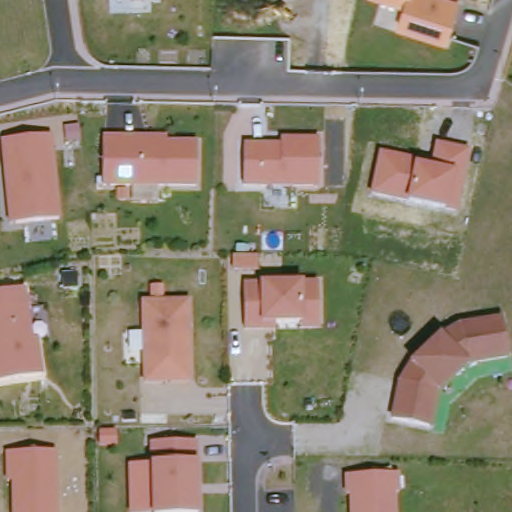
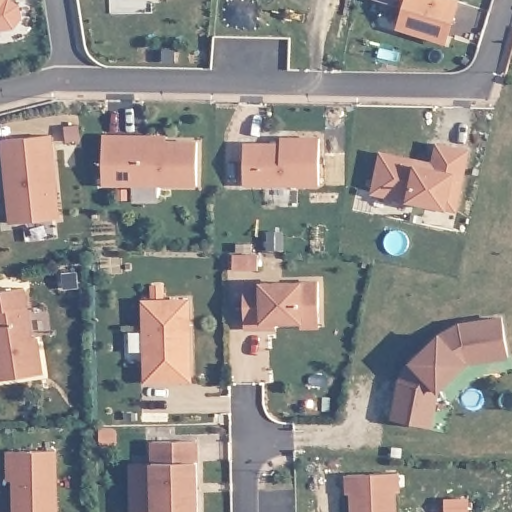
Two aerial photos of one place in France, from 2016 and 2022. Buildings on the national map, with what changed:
new [(13,5),(16,5),(25,11),(27,23),(21,32),(0,36),(0,0),(12,0),(13,5)]
unchanged [(445,42),(393,26),(400,5),(382,0),(459,0),(445,42)]
unchanged [(15,192),(11,144),(59,139),(67,222),(24,226),(19,226),(15,192)]
unchanged [(149,140),(175,140),(175,145),(206,146),(205,190),(111,189),(112,140),(149,140)]
unchanged [(455,209),(445,207),(404,199),(370,192),(378,150),(430,159),(434,140),(468,147),(455,209)]
unchanged [(297,149),(297,143),(327,143),(327,190),(252,189),(252,149),(297,149)]
unchanged [(266,259),(266,275),(240,275),(241,259),(266,259)]
unchanged [(302,322),(302,315),(263,316),(263,322),(247,322),(245,278),(319,274),(320,300),(320,320),(302,322)]
unchanged [(85,276),(86,290),(72,291),(72,277),(85,276)]
unchanged [(160,280),(160,290),(150,290),(150,280),(160,280)]
unchanged [(0,295),(25,291),(32,342),(38,342),(42,378),(0,384),(0,295)]
unchanged [(167,380),(145,380),(142,300),(188,298),(189,360),(190,378),(167,380)]
unchanged [(508,351),(470,358),(440,389),(433,422),(395,415),(402,377),(413,359),(442,331),(460,320),(503,313),(508,351)]
unchanged [(202,512),(158,512),(156,440),(200,438),(202,512)]
unchanged [(13,512),(12,480),(7,480),(7,470),(6,450),(55,449),(57,512),(13,512)]
unchanged [(392,495),(393,512),(351,512),(350,496),(346,496),(345,477),(397,475),(397,495),(392,495)]

